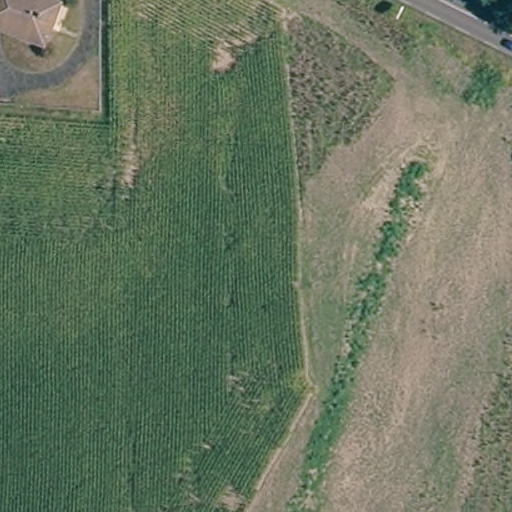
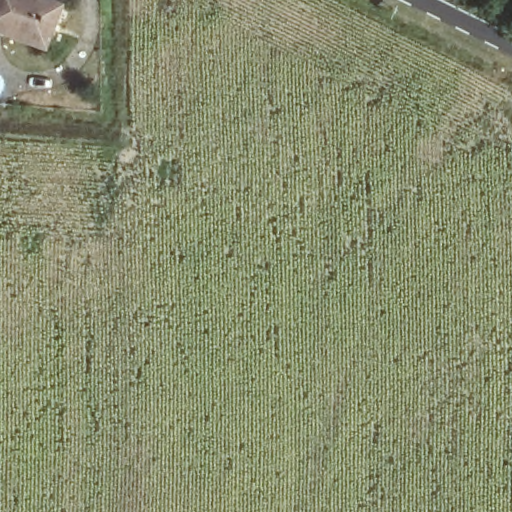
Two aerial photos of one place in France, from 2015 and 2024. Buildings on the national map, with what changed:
unchanged [(0,29),(0,0),(49,0),(60,4),(45,46),(0,29)]

